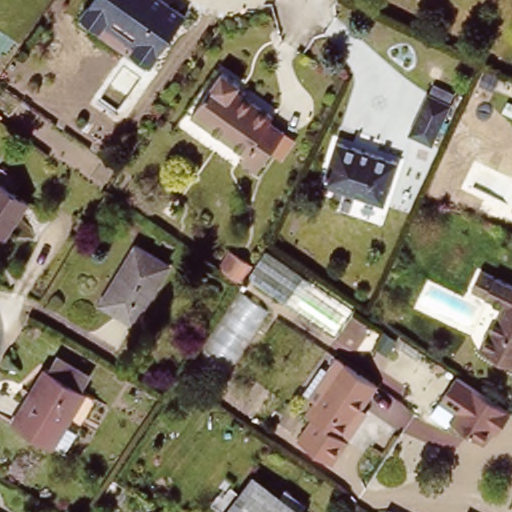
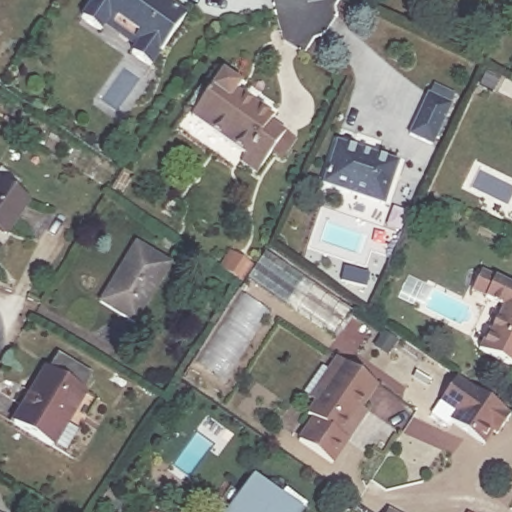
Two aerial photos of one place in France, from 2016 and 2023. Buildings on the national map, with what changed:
unchanged [(158,48),(150,60),(134,49),(142,36),(111,16),(102,27),(86,16),(95,5),(93,4),(95,0),(171,0),(187,10),(161,50),(158,48)]
unchanged [(240,84),(236,90),(273,114),(269,119),(285,130),(258,169),(242,159),(247,152),(192,114),(222,71),(240,84)]
unchanged [(448,107),(430,146),(407,137),(425,96),(448,107)]
unchanged [(399,160),(386,202),(324,182),(337,140),(399,160)]
unchanged [(4,166),(25,180),(17,192),(31,202),(9,235),(0,228),(0,171),(4,166)]
unchanged [(169,264),(134,322),(100,301),(135,244),(169,264)]
unchanged [(253,268),(264,251),(357,313),(337,340),(249,277),(244,285),(217,268),(228,250),(253,268)]
unchanged [(473,350),(483,329),(486,330),(497,306),(466,291),(476,270),(512,288),(512,367),(512,368),(473,350)]
unchanged [(238,290),(268,311),(231,370),(200,347),(238,290)]
unchanged [(344,438),(330,460),(297,438),(313,415),(307,410),(314,400),(308,396),(326,368),(332,360),(334,355),(373,381),(370,385),(357,405),(363,409),(344,438)]
unchanged [(22,400),(41,367),(48,371),(57,358),(82,373),(74,388),(79,391),(58,425),(71,431),(57,453),(10,425),(8,423),(22,400)]
unchanged [(508,411),(485,442),(453,421),(447,428),(428,413),(452,375),(508,411)]
unchanged [(303,512),(226,512),(250,480),(281,501),(286,494),(306,508),(303,512)]

